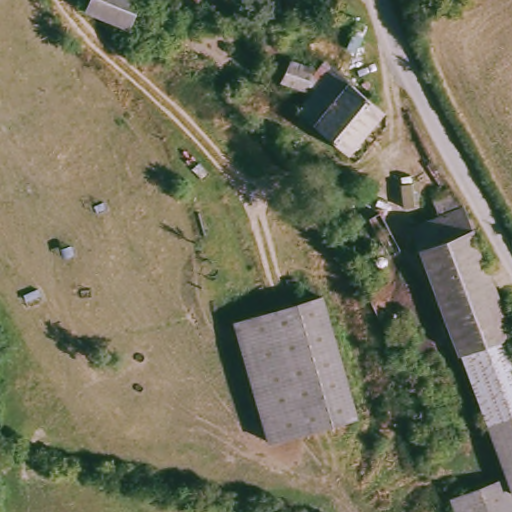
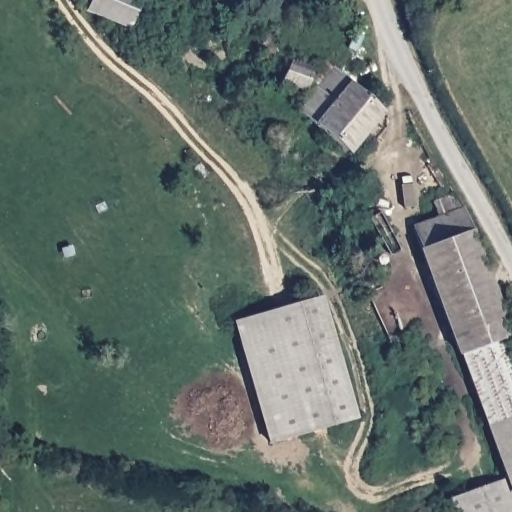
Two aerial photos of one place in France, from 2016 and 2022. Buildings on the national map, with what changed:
unchanged [(92,12),(96,0),(99,0),(101,1),(101,0),(148,0),(135,31),(92,12)]
unchanged [(99,0),(101,0),(101,1),(99,0)]
unchanged [(246,0),(273,0),(250,9),(246,0)]
unchanged [(314,87),(292,80),(290,79),(295,59),(321,66),(320,68),(314,87)]
unchanged [(360,148),(308,110),(340,67),(395,108),(360,148)]
unchanged [(417,240),(440,229),(434,212),(456,205),(465,221),(512,341),(512,460),(417,240)]
unchanged [(365,417),(273,441),(237,321),(326,295),(365,417)]
unchanged [(465,500),(512,479),(512,512),(469,512),(465,500)]

